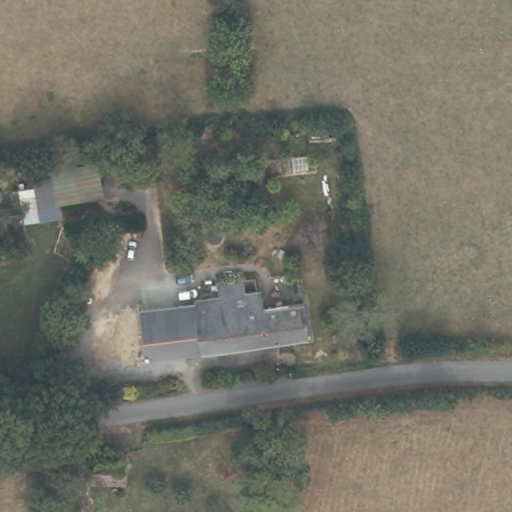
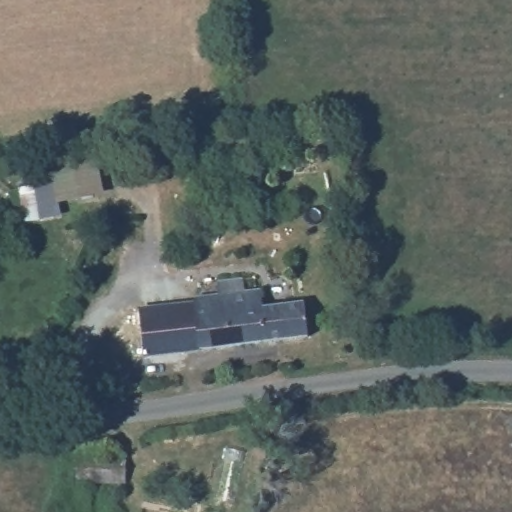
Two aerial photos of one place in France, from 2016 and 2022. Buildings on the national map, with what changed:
unchanged [(187,351),(183,318),(181,307),(195,305),(194,298),(207,297),(221,295),(220,284),(243,282),(245,289),(261,289),(264,298),(281,294),(282,302),(303,301),(308,333),(187,351)]
unchanged [(129,306),(176,300),(185,357),(136,365),(129,306)]
unchanged [(124,489),(72,490),(74,462),(124,460),(124,489)]

